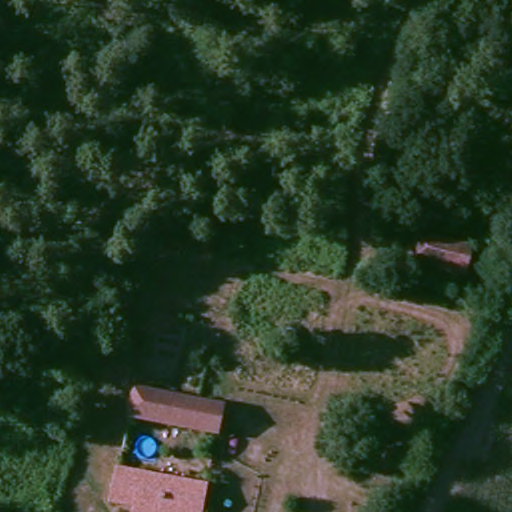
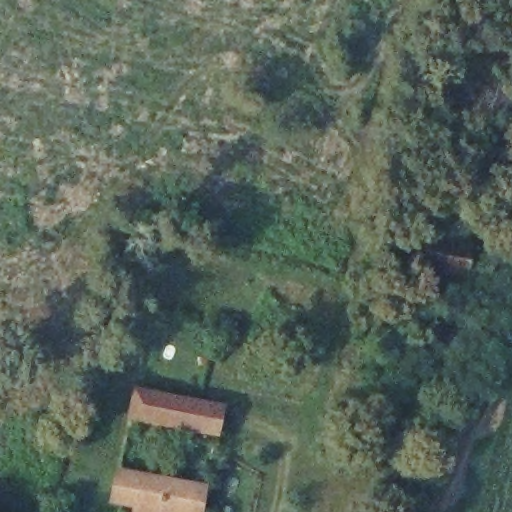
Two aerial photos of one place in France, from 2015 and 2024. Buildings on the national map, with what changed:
unchanged [(475,245),(467,269),(422,254),(425,234),(475,245)]
unchanged [(221,437),(130,419),(136,385),(231,401),(221,437)]
unchanged [(206,512),(136,512),(137,506),(114,500),(124,465),(213,478),(206,512)]

